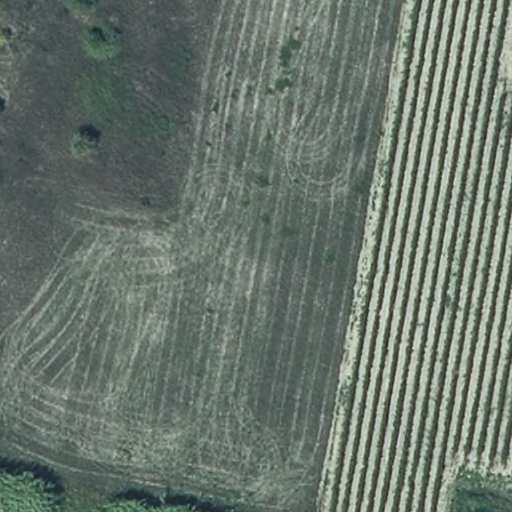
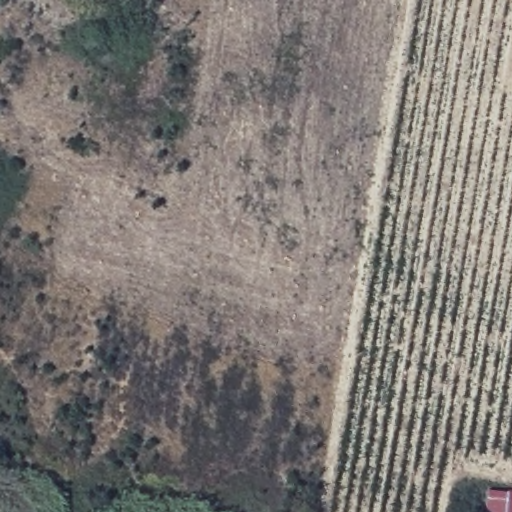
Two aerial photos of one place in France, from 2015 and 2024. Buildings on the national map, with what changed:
new [(486,487),(512,490),(512,512),(483,512),(486,487)]

